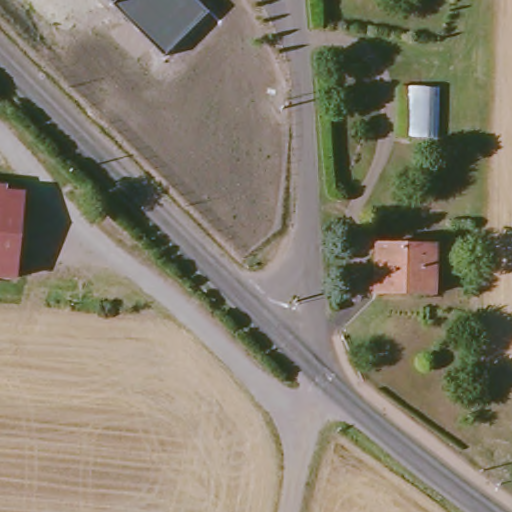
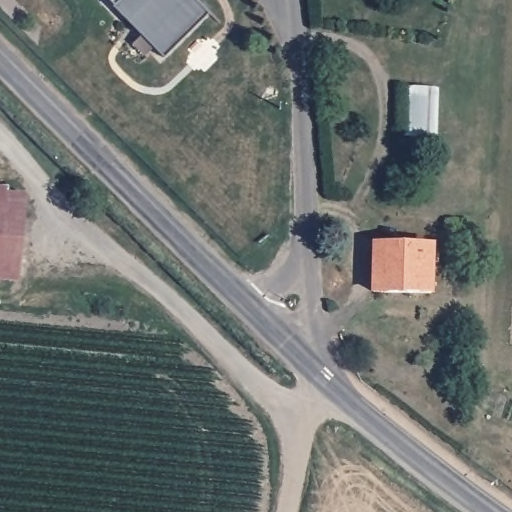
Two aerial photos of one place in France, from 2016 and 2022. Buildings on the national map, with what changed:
unchanged [(112,1),(111,0),(196,0),(206,11),(162,53),(112,1)]
unchanged [(443,138),(409,137),(413,86),(445,86),(443,138)]
unchanged [(4,186),(3,194),(21,196),(14,283),(0,282),(0,186),(4,186)]
unchanged [(432,293),(376,295),(375,270),(384,269),(384,247),(429,246),(432,293)]

